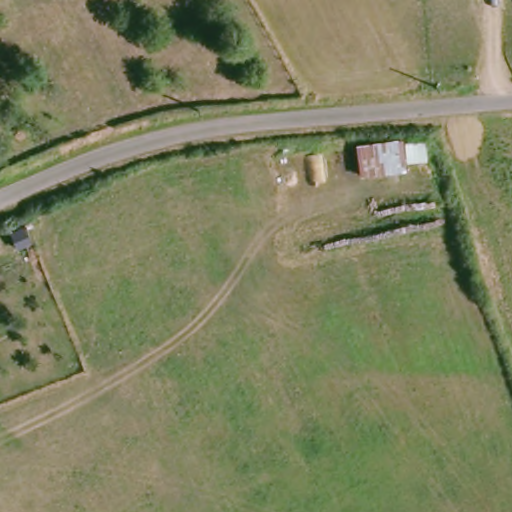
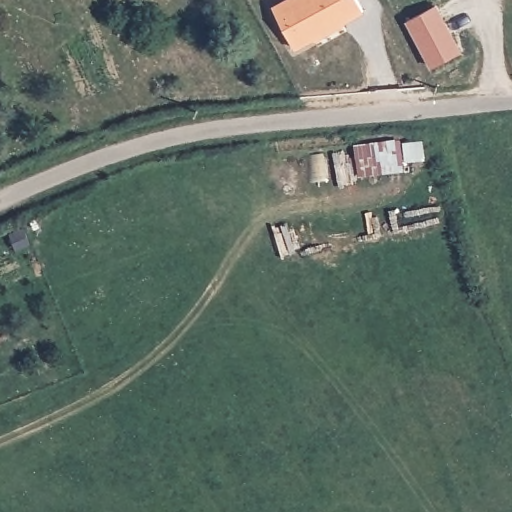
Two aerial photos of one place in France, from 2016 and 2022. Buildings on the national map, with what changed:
new [(272,10),(290,0),(356,0),(363,14),(295,50),(272,10)]
new [(461,55),(431,71),(406,25),(437,7),(461,55)]

